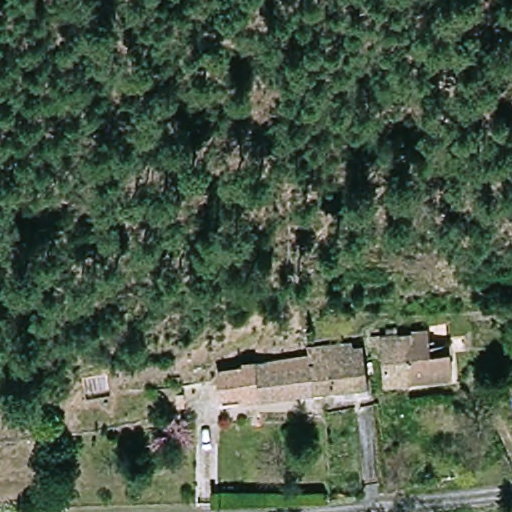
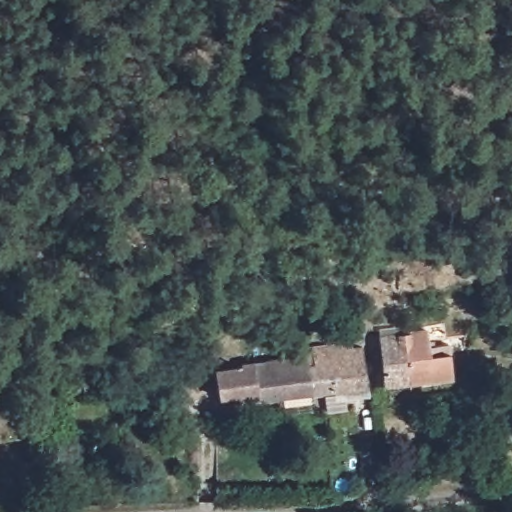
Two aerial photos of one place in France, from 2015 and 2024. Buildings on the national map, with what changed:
unchanged [(410,331),(435,329),(437,339),(453,338),(456,360),(456,376),(415,380),(410,331)]
unchanged [(410,331),(415,380),(388,383),(384,334),(410,331)]
unchanged [(360,390),(339,392),(338,387),(307,390),(306,387),(303,360),(301,342),(355,337),(360,390)]
unchanged [(243,368),(303,360),(306,387),(247,394),(223,396),(220,373),(243,368)]

